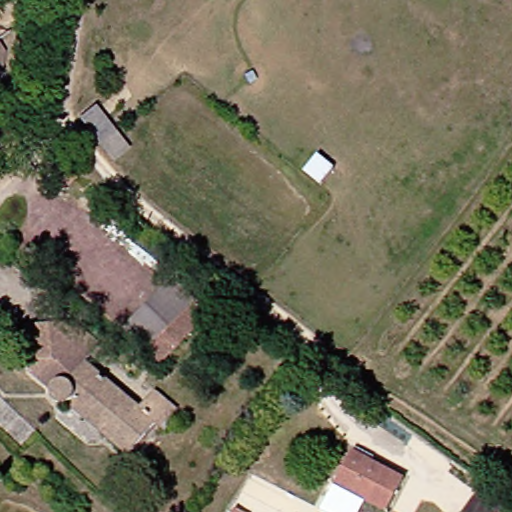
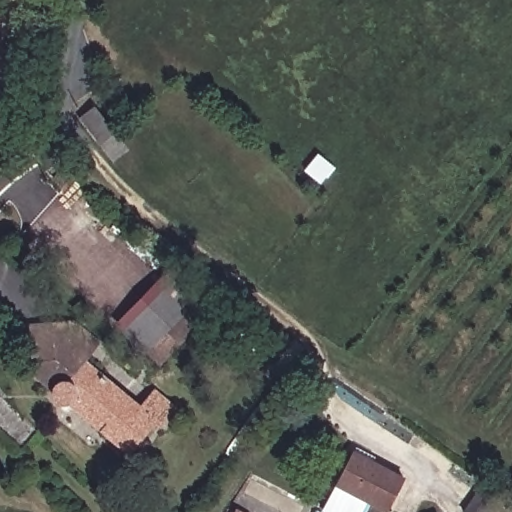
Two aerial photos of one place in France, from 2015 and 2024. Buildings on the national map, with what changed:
unchanged [(9,52),(5,79),(0,78),(0,40),(0,41),(9,52)]
unchanged [(125,148),(112,158),(81,119),(94,109),(125,148)]
unchanged [(75,177),(63,190),(54,179),(64,167),(75,177)]
unchanged [(165,365),(152,352),(129,330),(178,280),(200,302),(213,314),(184,343),(185,345),(165,365)]
unchanged [(72,405),(69,406),(67,405),(64,404),(62,403),(60,401),(59,399),(57,397),(57,394),(57,391),(57,388),(44,378),(37,372),(35,351),(34,326),(58,324),(80,323),(105,345),(95,357),(90,362),(145,408),(159,391),(181,410),(174,418),(177,422),(170,431),(162,422),(134,454),(106,430),(75,404),(74,405),(72,405)]
unchanged [(0,428),(0,397),(37,432),(22,448),(0,428)]
unchanged [(404,480),(388,511),(337,483),(353,453),(404,480)]
unchanged [(510,504),(504,512),(468,512),(486,487),(510,504)]
unchanged [(511,511),(512,509),(512,511),(511,511)]

